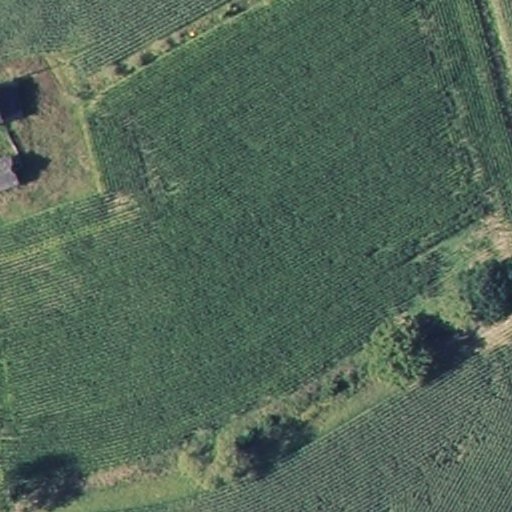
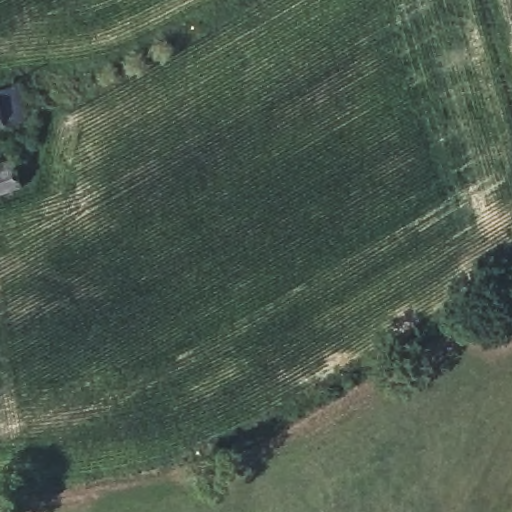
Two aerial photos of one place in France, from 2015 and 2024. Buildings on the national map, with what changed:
unchanged [(22,116),(0,123),(0,89),(12,85),(22,116)]
unchanged [(17,167),(7,171),(13,188),(0,193),(0,163),(13,158),(17,167)]

